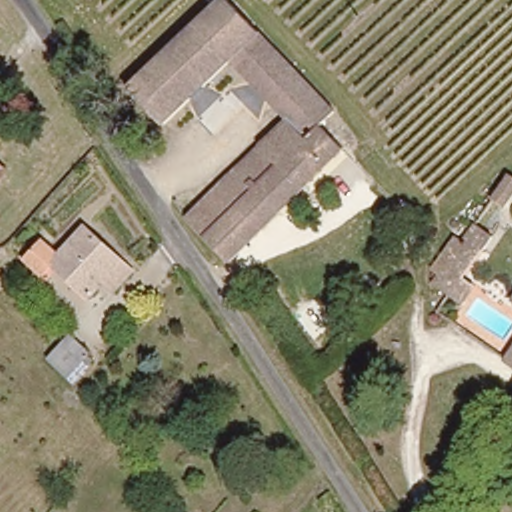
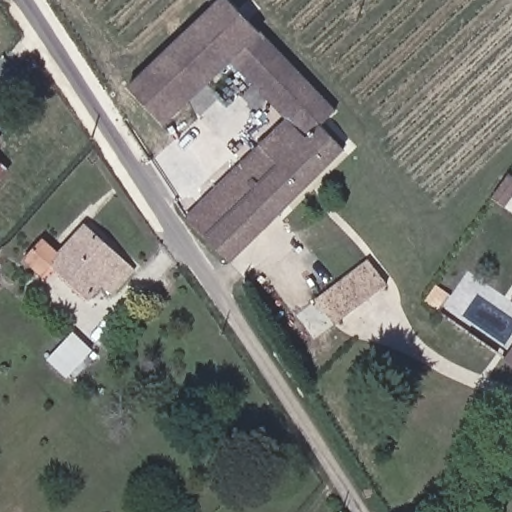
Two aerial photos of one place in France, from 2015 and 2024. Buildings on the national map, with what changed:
unchanged [(220,0),(226,0),(307,81),(281,105),(234,58),(187,105),(157,75),(152,68),(220,0)]
unchanged [(157,75),(187,105),(166,126),(131,88),(152,68),(157,75)]
unchanged [(323,122),(347,148),(275,220),(231,262),(191,219),(293,117),(281,105),(307,81),(337,110),(323,122)]
unchanged [(0,175),(0,163),(6,168),(0,175)]
unchanged [(512,194),(501,209),(488,201),(510,170),(512,172),(512,194)]
demolished [(461,234),(472,219),(492,234),(483,249),(461,234)]
unchanged [(136,267),(117,288),(108,279),(95,293),(87,285),(91,282),(61,257),(46,273),(28,256),(47,234),(67,250),(89,226),(136,267)]
demolished [(432,263),(441,250),(447,255),(439,268),(432,263)]
new [(369,259),(387,284),(333,323),(315,297),(369,259)]
unchanged [(81,358),(61,381),(41,364),(61,340),(79,356),(81,358)]
unchanged [(512,353),(512,366),(506,362),(512,353)]

